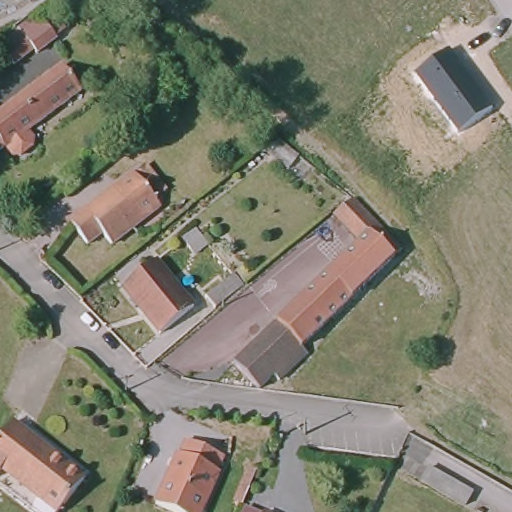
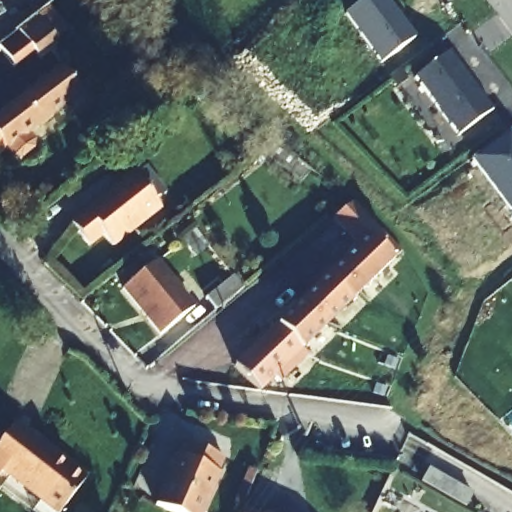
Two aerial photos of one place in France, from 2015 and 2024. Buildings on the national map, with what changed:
new [(414,38),(380,65),(342,16),(364,0),(386,0),(414,38)]
unchanged [(42,9),(46,6),(65,29),(6,75),(0,67),(0,42),(42,9)]
unchanged [(492,109),(457,136),(413,76),(450,50),(492,109)]
unchanged [(83,93),(0,152),(0,109),(55,68),(83,93)]
new [(512,218),(470,161),(510,133),(512,136),(512,218)]
unchanged [(134,167),(161,198),(114,238),(103,227),(89,238),(71,220),(134,167)]
unchanged [(360,245),(336,219),(355,202),(378,227),(382,224),(406,249),(370,283),(346,258),(360,245)]
unchanged [(346,258),(370,283),(330,323),(305,298),(346,258)]
unchanged [(150,260),(191,306),(160,332),(120,287),(150,260)]
unchanged [(200,298),(225,276),(237,291),(211,313),(200,298)]
unchanged [(235,365),(305,298),(330,323),(301,351),(306,356),(278,383),(273,377),(259,390),(235,365)]
unchanged [(15,420),(85,475),(60,509),(5,468),(0,474),(0,439),(15,420)]
unchanged [(176,459),(182,444),(217,458),(212,474),(215,475),(200,512),(157,512),(152,510),(172,458),(176,459)]
unchanged [(430,467),(477,493),(468,509),(421,481),(430,467)]

